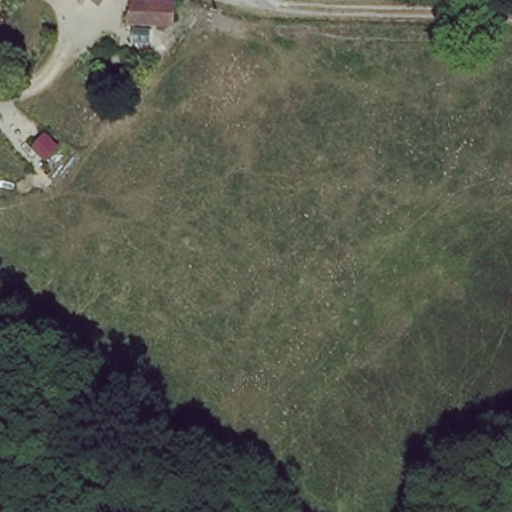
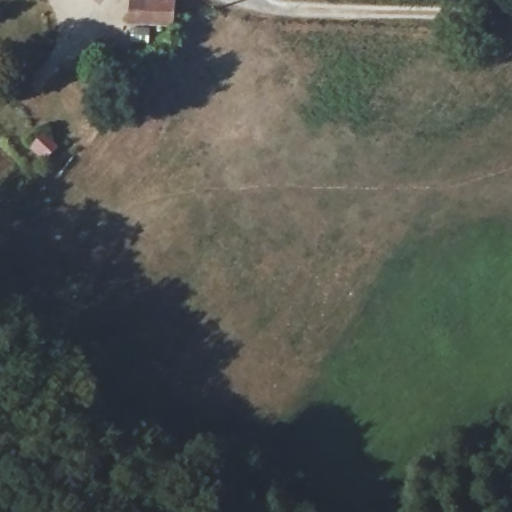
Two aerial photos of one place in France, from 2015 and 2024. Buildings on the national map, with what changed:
unchanged [(92,0),(106,0),(102,7),(92,0)]
unchanged [(178,20),(136,20),(136,0),(179,0),(178,20)]

